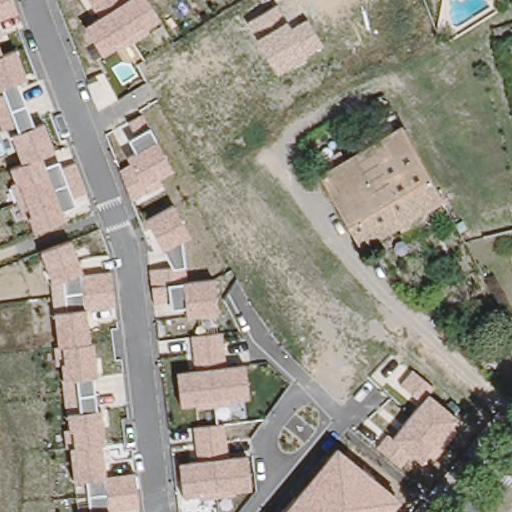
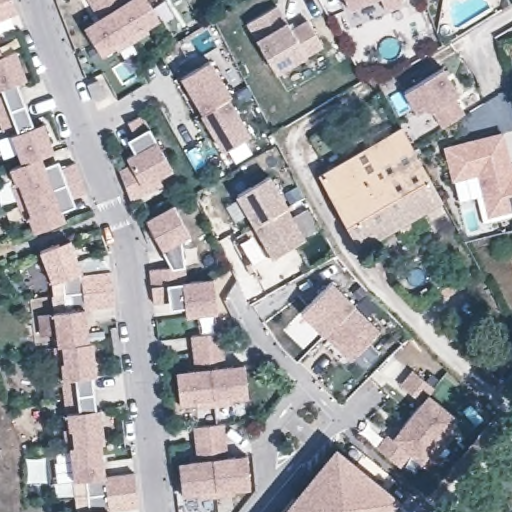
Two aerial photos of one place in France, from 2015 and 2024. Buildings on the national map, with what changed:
unchanged [(17,13),(0,20),(0,0),(12,0),(17,13)]
unchanged [(85,26),(100,17),(88,0),(127,0),(128,0),(148,0),(159,20),(148,27),(150,35),(118,53),(117,48),(103,55),(85,26)]
new [(349,10),(345,0),(374,0),(349,10)]
new [(405,4),(386,11),(381,0),(403,0),(405,4)]
unchanged [(257,41),(248,23),(277,5),(285,21),(290,30),(307,18),(322,45),(306,56),(276,74),(257,41)]
unchanged [(2,54),(17,49),(27,79),(17,84),(33,125),(43,122),(54,151),(42,157),(45,165),(58,160),(61,168),(77,163),(86,191),(72,197),(75,204),(62,209),(65,219),(35,231),(31,215),(23,219),(10,185),(15,183),(9,168),(22,164),(11,136),(19,133),(16,125),(2,129),(0,124),(0,96),(3,95),(2,88),(0,88),(0,50),(2,54)]
new [(215,61),(233,99),(230,100),(204,113),(186,75),(215,61)]
new [(434,106),(426,107),(417,113),(404,90),(444,67),(459,94),(455,96),(465,114),(442,126),(434,106)]
new [(204,113),(230,100),(249,139),(222,153),(203,113),(204,113)]
unchanged [(120,170),(130,165),(127,156),(136,151),(129,139),(137,134),(128,119),(141,111),(150,126),(172,169),(160,175),(164,185),(131,200),(120,170)]
unchanged [(364,242),(324,170),(407,124),(447,195),(364,242)]
new [(444,146),(503,131),(512,168),(512,210),(488,216),(452,180),(444,146)]
new [(271,176),(288,206),(287,207),(256,225),(239,195),(271,176)]
unchanged [(175,205),(191,236),(182,241),(184,265),(186,265),(188,281),(215,279),(220,314),(186,317),(185,307),(171,309),(170,301),(151,302),(149,269),(171,268),(161,250),(145,220),(175,205)]
new [(256,225),(287,207),(305,237),(273,255),(255,225),(256,225)]
unchanged [(81,272),(111,270),(113,306),(85,309),(88,344),(94,343),(98,377),(93,378),(96,409),(101,408),(106,475),(134,472),(139,507),(110,510),(110,512),(81,512),(90,511),(87,479),(75,480),(67,414),(64,379),(56,313),(52,281),(41,252),(71,239),(81,272)]
new [(329,283),(354,305),(354,306),(325,335),(324,336),(300,314),(329,283)]
new [(354,306),(378,329),(350,359),(325,335),(354,306)]
new [(494,322),(509,334),(501,344),(493,354),(478,341),(486,331),(494,322)]
unchanged [(176,371),(196,369),(192,335),(222,332),(226,366),(245,364),(249,397),(180,406),(176,371)]
unchanged [(376,448),(388,431),(394,436),(422,403),(398,386),(413,370),(434,388),(429,394),(458,420),(452,428),(457,433),(434,460),(428,456),(420,464),(410,456),(399,468),(376,448)]
unchanged [(178,463),(199,461),(195,427),(224,423),(229,456),(249,455),(250,489),(183,496),(178,463)]
unchanged [(400,498),(389,512),(282,512),(337,446),(400,498)]

